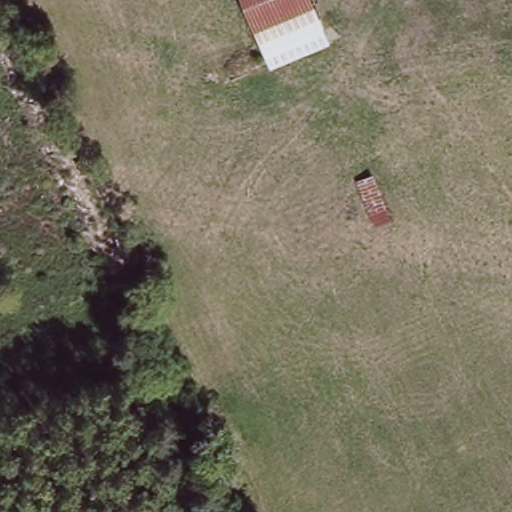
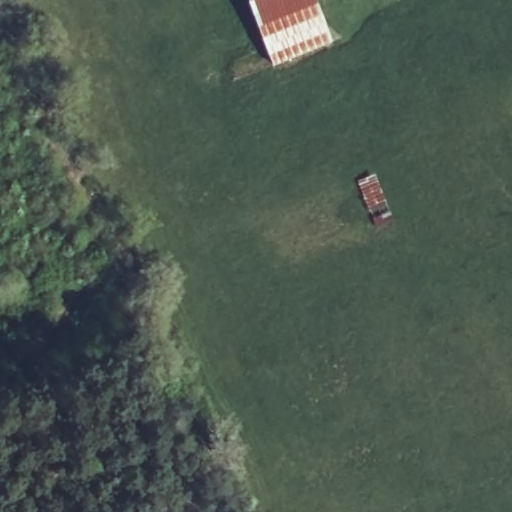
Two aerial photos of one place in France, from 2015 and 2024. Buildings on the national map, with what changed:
unchanged [(311,2),(260,26),(247,0),(310,0),(311,2)]
unchanged [(328,38),(276,62),(260,26),(311,2),(328,38)]

